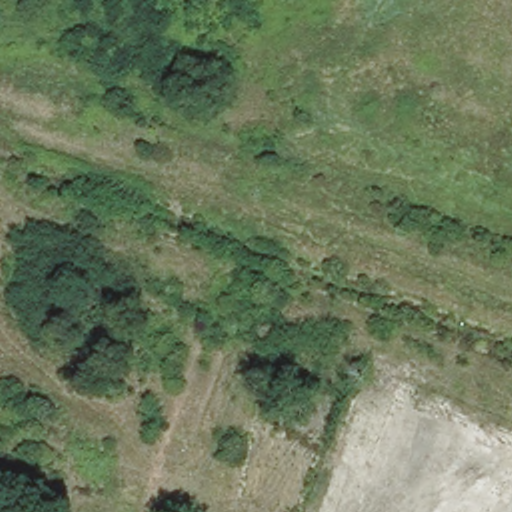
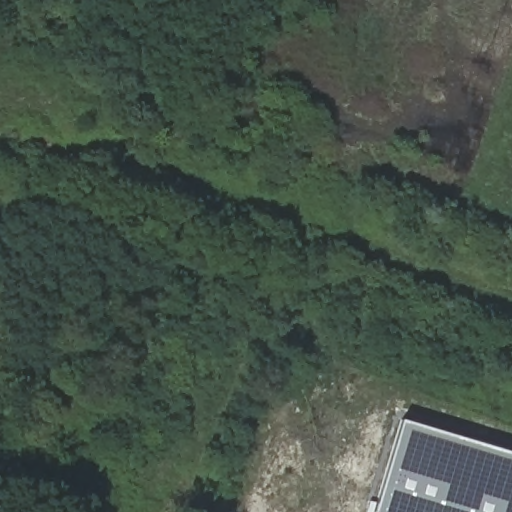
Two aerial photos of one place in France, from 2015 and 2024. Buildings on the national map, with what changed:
new [(400,421),(512,455),(512,512),(373,512),(400,421)]

